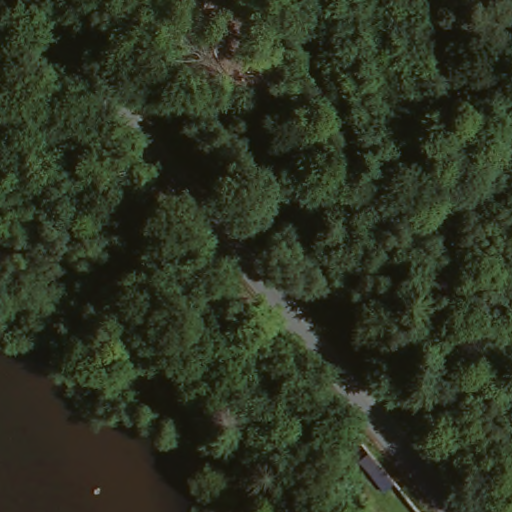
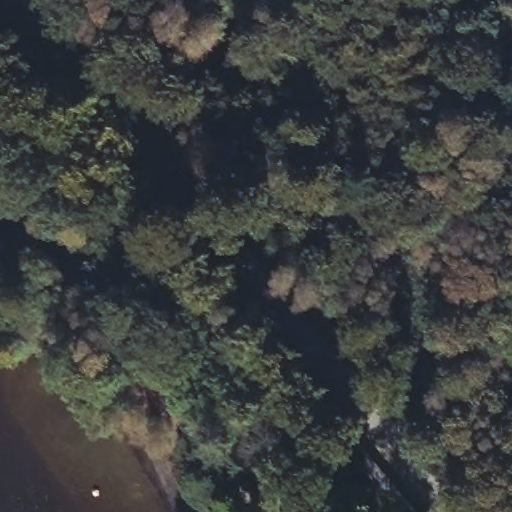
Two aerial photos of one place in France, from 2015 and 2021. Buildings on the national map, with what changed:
unchanged [(445,21),(460,20),(462,40),(447,42),(445,21)]
unchanged [(487,59),(474,28),(482,24),(494,56),(487,59)]

